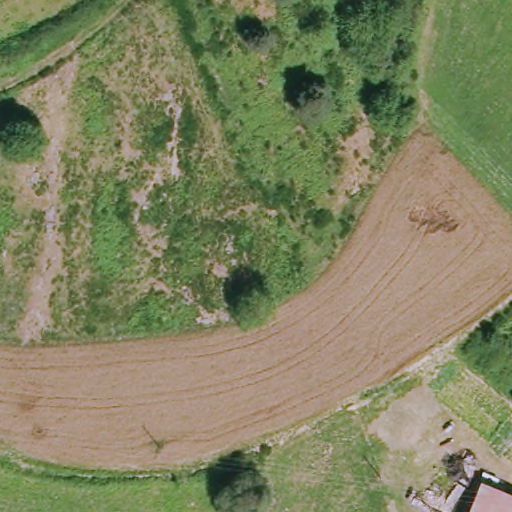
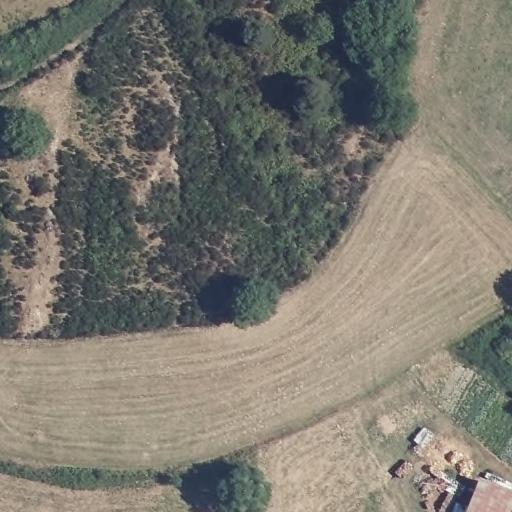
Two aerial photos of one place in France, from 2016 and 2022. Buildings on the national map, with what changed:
unchanged [(512,507),(510,512),(468,512),(479,485),(512,498),(512,507)]

